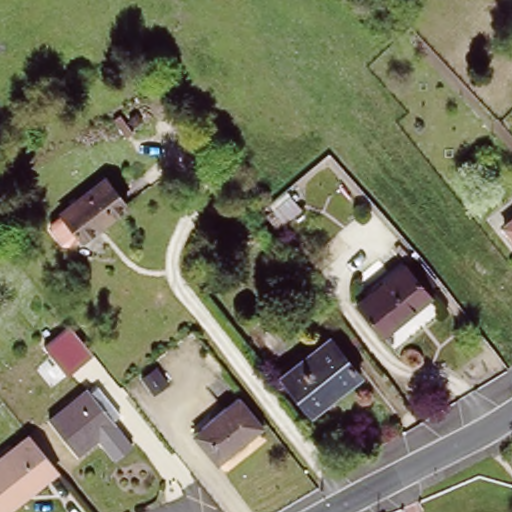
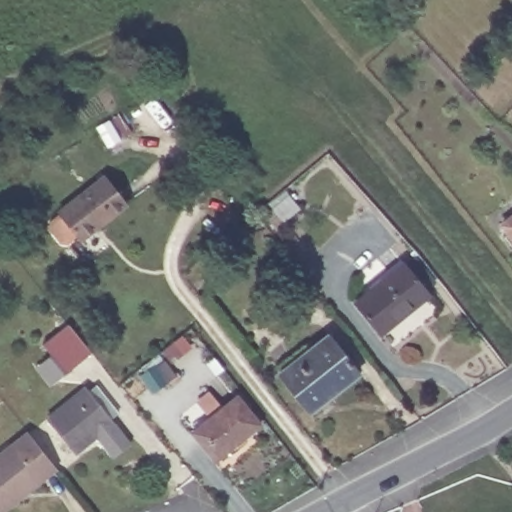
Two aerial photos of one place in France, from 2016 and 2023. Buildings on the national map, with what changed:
unchanged [(107,177),(127,206),(82,241),(60,212),(107,177)]
unchanged [(512,226),(512,242),(504,232),(511,227),(512,226)]
unchanged [(435,303),(389,340),(358,301),(402,264),(435,303)]
unchanged [(74,358),(55,334),(70,321),(90,345),(74,358)]
unchanged [(357,378),(310,419),(278,381),(277,381),(326,341),(330,346),(357,378)]
unchanged [(82,456),(79,458),(47,420),(76,397),(87,388),(117,426),(110,433),(82,456)]
unchanged [(263,431),(220,466),(197,438),(240,404),(263,431)]
unchanged [(0,512),(0,511),(0,459),(25,439),(55,476),(0,512)]

